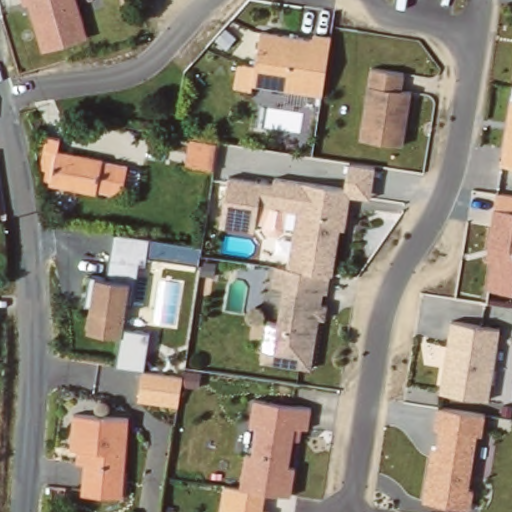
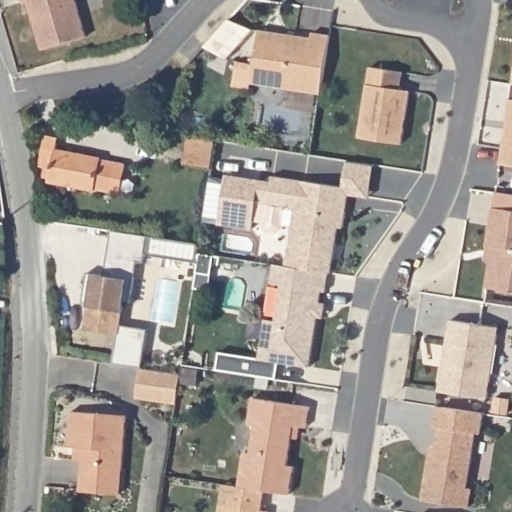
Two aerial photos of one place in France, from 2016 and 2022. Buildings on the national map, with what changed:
unchanged [(42,46),(25,0),(78,0),(88,34),(42,46)]
unchanged [(256,81),(264,29),(316,36),(317,31),(334,34),(333,39),(325,91),(256,81)]
unchanged [(401,75),(399,92),(408,94),(400,146),(358,139),(368,70),(401,75)]
unchanged [(512,104),(512,120),(509,120),(512,104)]
unchanged [(220,134),(216,159),(216,160),(190,156),(193,130),(220,134)]
unchanged [(505,144),(510,145),(512,136),(512,162),(503,161),(505,144)]
unchanged [(72,145),(71,157),(118,161),(118,163),(159,167),(156,195),(132,193),(131,198),(116,196),(116,194),(69,189),(70,177),(57,176),(58,156),(59,144),(72,145)]
unchanged [(277,179),(345,189),(348,190),(352,163),(377,167),(372,199),(352,196),(350,213),(347,229),(342,228),(335,274),(332,274),(319,272),(299,269),(291,267),(299,210),(274,207),(270,230),(253,227),(252,230),(225,226),(232,177),(276,184),(277,179)]
unchanged [(512,292),(490,289),(494,261),(496,248),(491,247),(496,210),(512,212),(512,292)]
unchanged [(204,237),(202,260),(147,253),(133,300),(127,300),(125,323),(152,326),(147,359),(117,358),(121,332),(87,326),(96,270),(108,270),(113,228),(204,237)]
unchanged [(299,269),(319,272),(332,274),(330,293),(326,293),(324,304),(330,305),(327,319),(322,318),(314,368),(264,360),(270,321),(285,323),(290,287),(275,285),(278,266),(291,267),(299,269)]
unchanged [(453,321),(502,329),(490,399),(442,392),(453,321)]
unchanged [(180,371),(175,401),(137,398),(144,366),(180,371)]
unchanged [(249,452),(256,453),(260,425),(254,424),(258,399),(314,407),(311,428),(298,426),(292,466),(298,467),(294,494),(286,493),(244,487),(249,452)]
unchanged [(487,414),(484,434),(479,433),(471,488),(476,489),(473,507),(426,500),(433,456),(438,457),(442,427),(437,427),(440,407),(487,414)]
unchanged [(113,495),(84,492),(86,462),(78,461),(79,445),(71,444),(74,410),(130,416),(127,472),(125,496),(113,495)]
unchanged [(268,511),(268,512),(219,512),(220,504),(268,511)]

